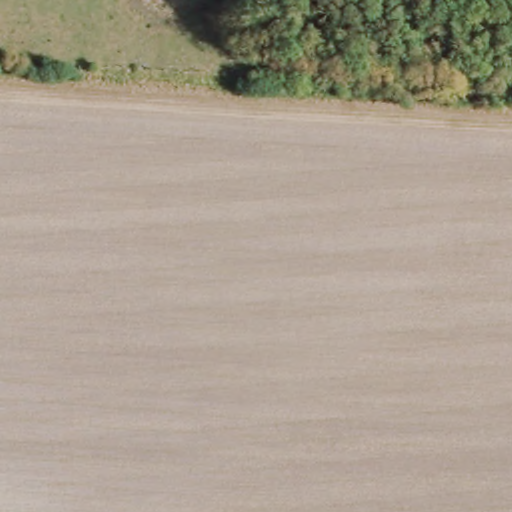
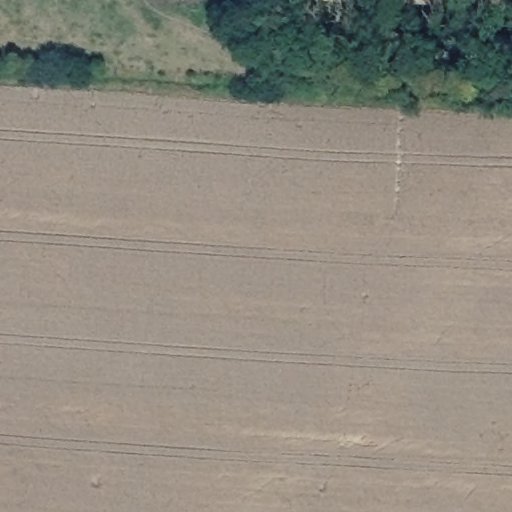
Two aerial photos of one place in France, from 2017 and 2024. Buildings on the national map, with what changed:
unchanged [(428,5),(428,11),(378,10),(378,5),(238,1),(239,0),(512,0),(512,6),(428,5)]

